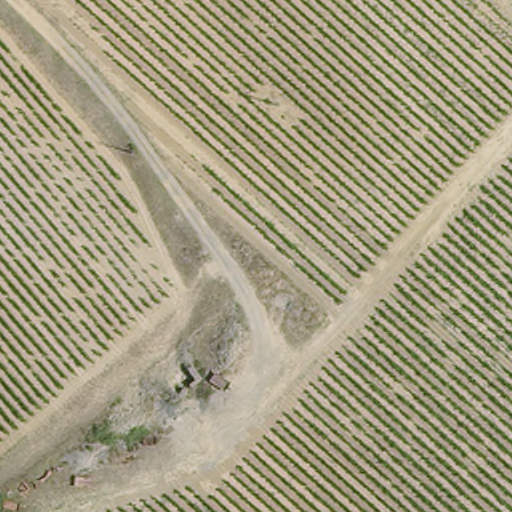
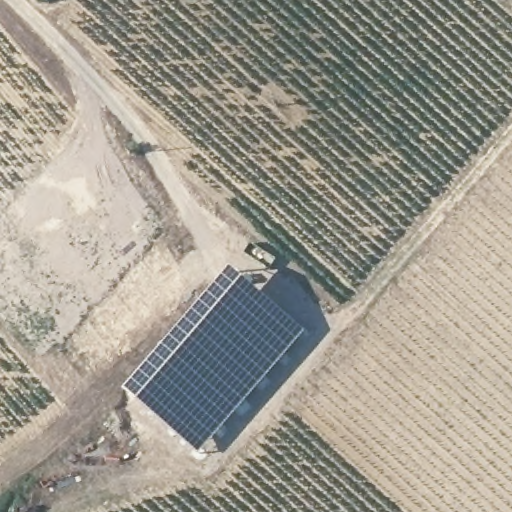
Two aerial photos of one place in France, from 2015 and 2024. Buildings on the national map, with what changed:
new [(200,456),(127,391),(234,268),(307,333),(200,456)]
demolished [(202,376),(172,406),(152,384),(182,353),(202,376)]

